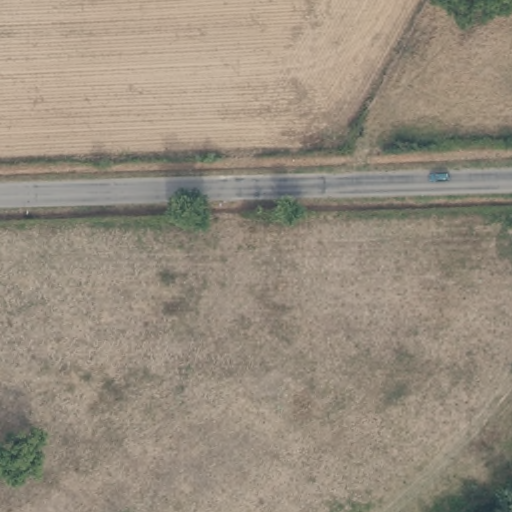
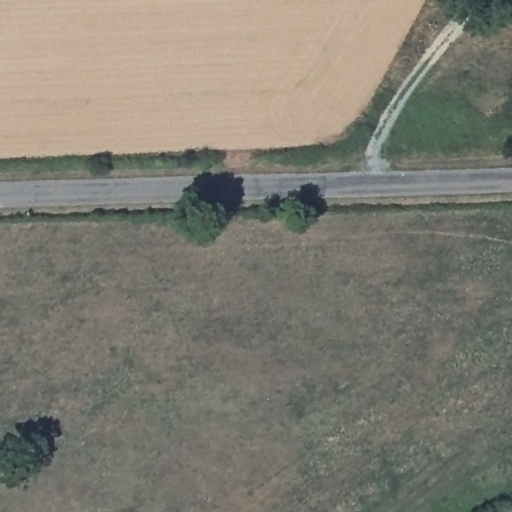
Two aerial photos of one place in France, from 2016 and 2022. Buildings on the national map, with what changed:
[]

